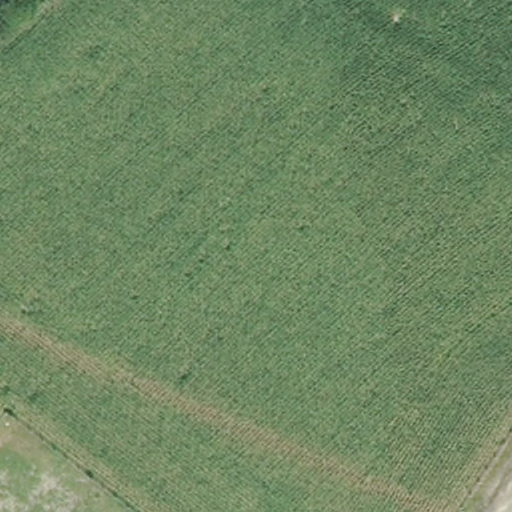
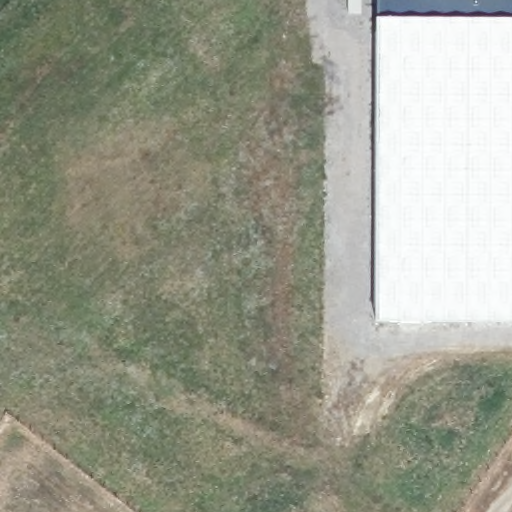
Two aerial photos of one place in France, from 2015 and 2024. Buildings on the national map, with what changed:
new [(376,322),(377,17),(378,0),(512,0),(512,322),(376,322)]

